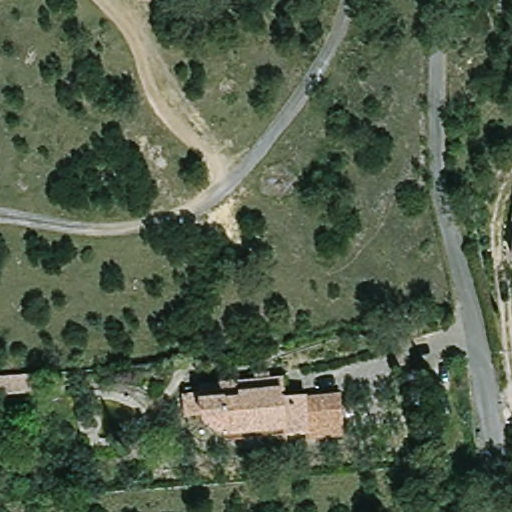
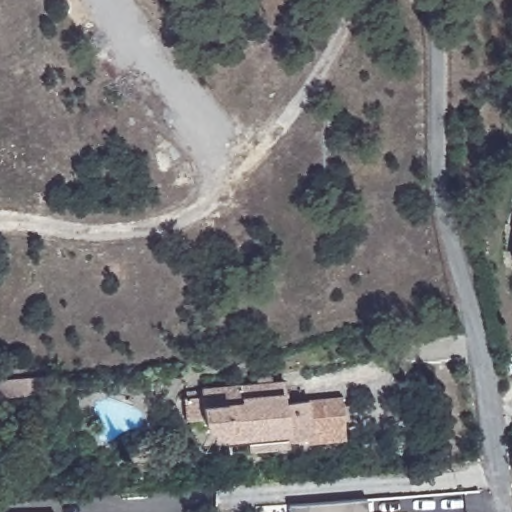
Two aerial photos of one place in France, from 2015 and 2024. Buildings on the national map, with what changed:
unchanged [(48,376),(51,393),(0,397),(0,380),(50,375),(48,376)]
unchanged [(254,445),(253,435),(231,437),(230,431),(225,430),(221,429),(217,427),(215,425),(213,423),(211,421),(209,418),(208,415),(207,413),(190,414),(188,392),(206,390),(205,384),(286,376),(288,397),(345,392),(348,434),(312,437),(312,430),(290,432),(291,442),(254,445)]
new [(365,498),(367,512),(290,512),(288,504),(365,498)]

